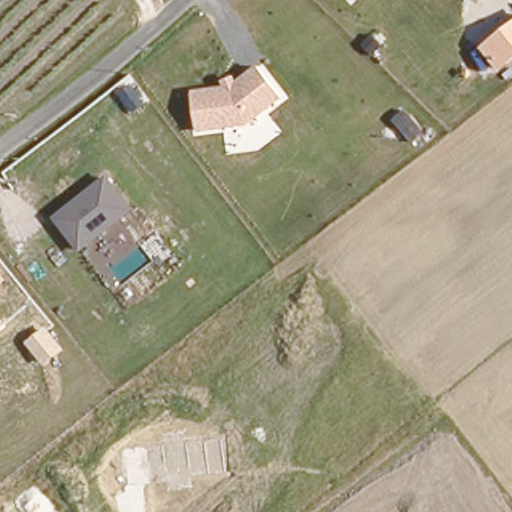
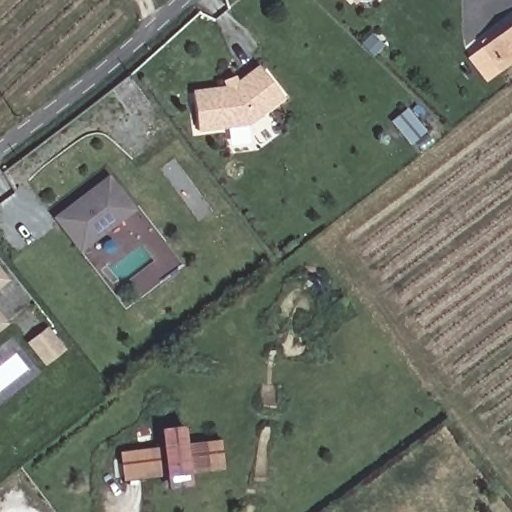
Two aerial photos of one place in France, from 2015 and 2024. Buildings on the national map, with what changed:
unchanged [(499,70),(480,47),(512,21),(512,60),(499,70)]
unchanged [(251,127),(198,133),(194,88),(231,86),(260,65),(284,99),(251,127)]
unchanged [(79,253),(53,219),(108,175),(135,210),(79,253)]
unchanged [(0,269),(9,280),(0,287),(0,269)]
unchanged [(0,331),(0,313),(9,324),(0,331)]
new [(50,332),(65,351),(50,364),(34,344),(50,332)]
new [(161,447),(159,429),(182,426),(184,444),(219,440),(222,467),(188,473),(189,487),(166,489),(165,475),(124,481),(121,451),(161,447)]

